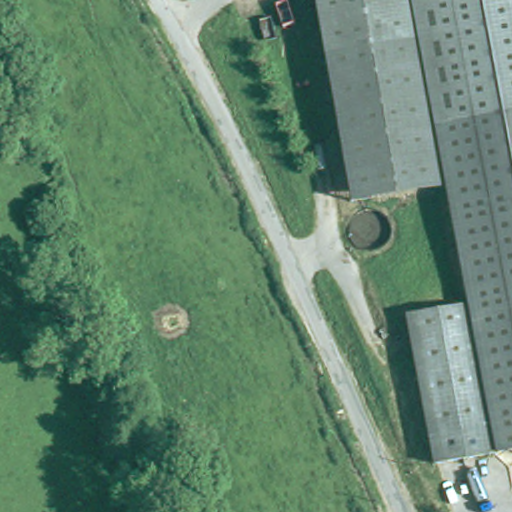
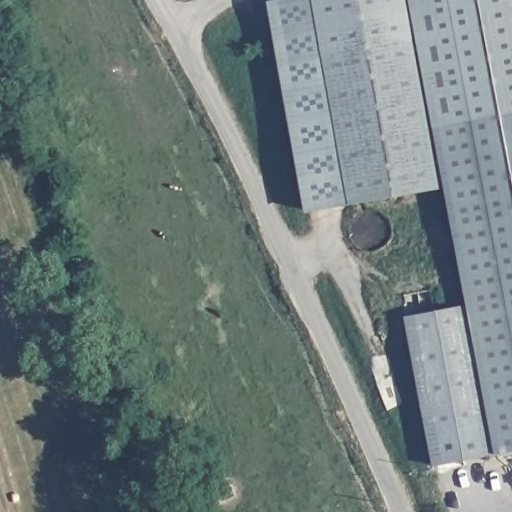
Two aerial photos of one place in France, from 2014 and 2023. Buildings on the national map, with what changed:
new [(268,0),(271,0),(313,0),(348,203),(307,211),(268,0)]
unchanged [(313,0),(410,0),(441,182),(442,185),(348,203),(313,0)]
unchanged [(463,296),(441,182),(410,0),(512,0),(512,450),(432,466),(402,309),(463,296)]

